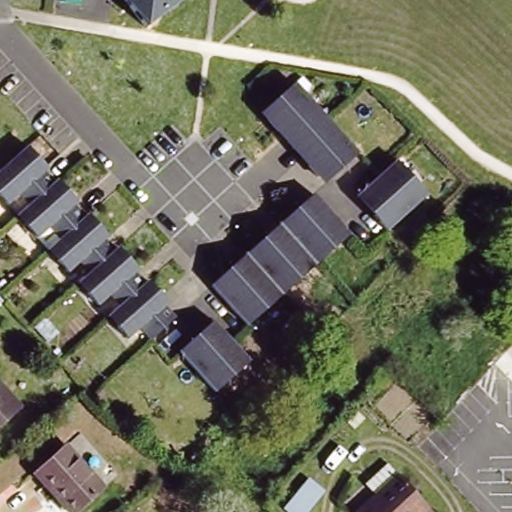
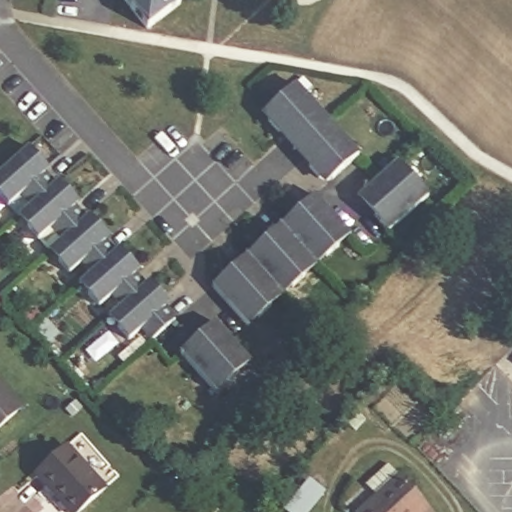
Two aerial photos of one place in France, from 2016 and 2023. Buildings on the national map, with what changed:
unchanged [(146,29),(124,0),(178,0),(180,2),(146,29)]
unchanged [(356,159),(330,182),(317,181),(291,151),(267,125),(267,112),(294,89),(324,122),(356,159)]
unchanged [(50,227),(36,239),(36,238),(35,236),(25,225),(17,216),(21,212),(30,205),(27,202),(21,194),(5,207),(0,200),(0,172),(29,148),(36,156),(41,162),(57,180),(65,189),(72,196),(89,215),(97,225),(103,231),(119,249),(127,258),(132,264),(148,281),(151,285),(155,290),(162,297),(157,301),(160,303),(174,319),(175,320),(174,321),(158,335),(156,336),(151,340),(142,329),(142,330),(127,342),(122,336),(115,327),(107,317),(112,312),(120,306),(119,304),(117,302),(112,295),(97,307),(95,304),(86,293),(78,285),(82,280),(90,274),(80,263),(67,274),(56,260),(48,250),(52,246),(60,240),(54,232),(50,227)]
unchanged [(392,170),(397,165),(407,177),(419,190),(427,200),(422,204),(385,235),(377,225),(355,201),(360,197),(392,170)]
unchanged [(216,281),(222,276),(227,271),(245,255),(248,252),(249,252),(255,246),(262,240),(279,225),(280,224),(289,216),(295,211),(315,194),(318,198),(320,200),(327,207),(338,221),(343,226),(345,229),(350,234),(339,244),(325,255),(315,265),(304,275),(300,278),(291,286),(281,295),(270,304),(261,312),(260,313),(257,316),(245,326),(242,321),(211,285),(216,281)]
unchanged [(179,358),(190,348),(214,325),(217,330),(244,360),(249,366),(238,376),(225,388),(215,397),(210,392),(179,358)]
unchanged [(0,426),(0,383),(22,406),(0,426)]
unchanged [(107,480),(76,509),(39,469),(70,440),(107,480)]
unchanged [(437,512),(359,512),(357,509),(401,470),(437,512)]
unchanged [(322,491),(305,512),(289,512),(284,508),(307,480),(322,491)]

